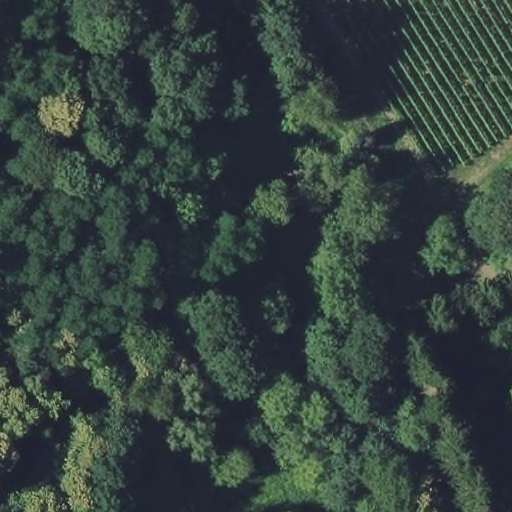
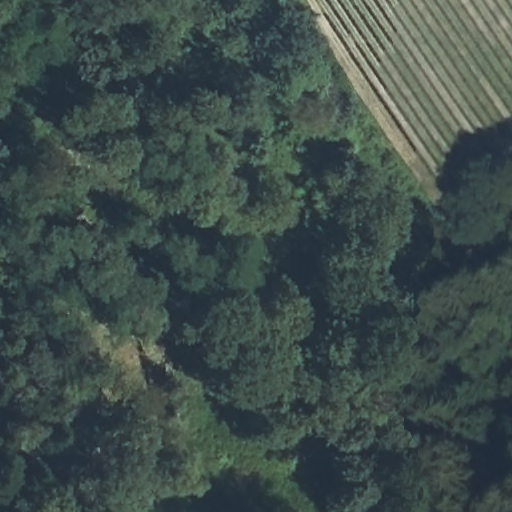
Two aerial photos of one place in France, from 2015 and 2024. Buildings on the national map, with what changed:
unchanged [(362,295),(337,267),(367,248),(386,275),(362,295)]

